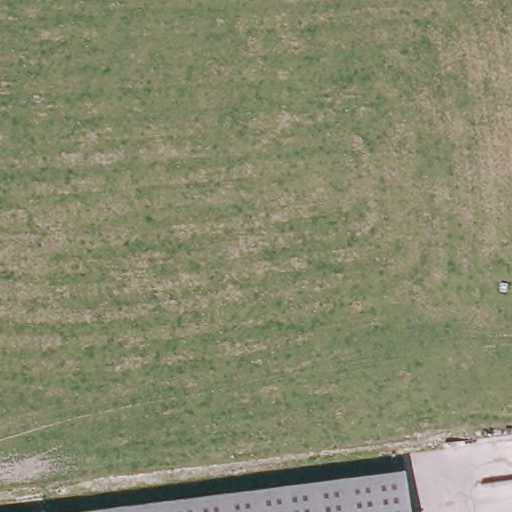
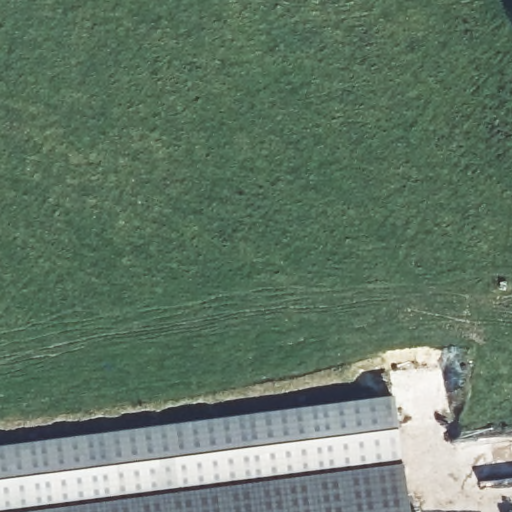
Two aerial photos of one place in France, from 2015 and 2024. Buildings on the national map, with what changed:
new [(0,512),(0,450),(393,398),(403,468),(57,512),(0,512)]
unchanged [(57,512),(403,468),(410,512),(57,512)]

